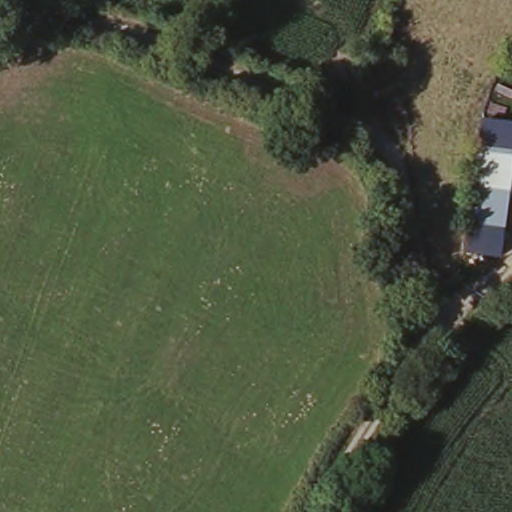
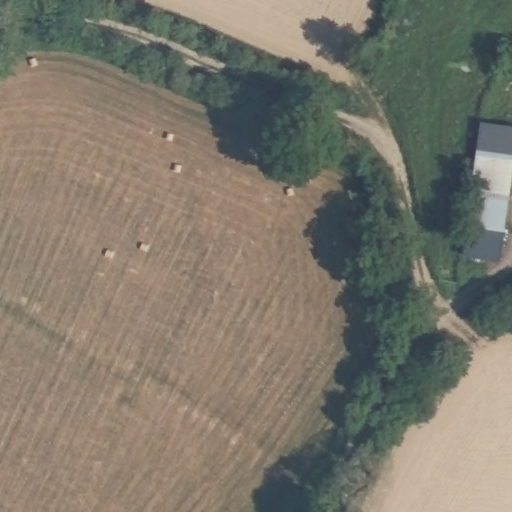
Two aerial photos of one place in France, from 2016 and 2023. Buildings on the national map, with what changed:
unchanged [(512,125),(512,193),(509,233),(471,228),(481,125),(512,125)]
unchanged [(509,233),(505,264),(466,260),(471,228),(509,233)]

